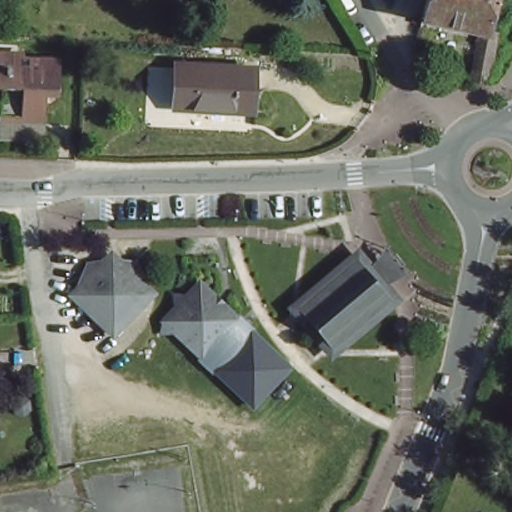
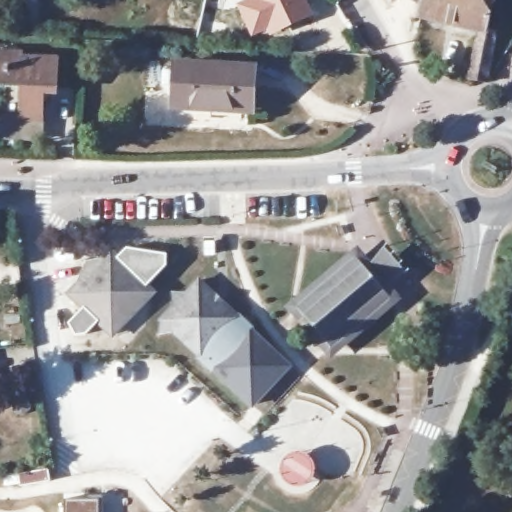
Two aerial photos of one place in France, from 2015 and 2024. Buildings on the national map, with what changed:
new [(314,15),(280,31),(252,41),(233,3),(239,0),(307,0),(314,15)]
unchanged [(492,2),(496,2),(496,7),(492,7),(486,37),(496,39),(489,75),(487,84),(486,88),(468,83),(476,38),(418,25),(424,0),(492,0),(492,2)]
unchanged [(54,87),(36,85),(35,99),(40,100),(39,117),(0,115),(0,97),(1,97),(3,83),(0,82),(0,53),(56,57),(54,87)]
unchanged [(259,72),(258,114),(181,111),(183,68),(259,72)]
unchanged [(358,252),(371,268),(387,255),(404,276),(388,289),(401,306),(330,365),(317,352),(323,346),(330,354),(390,304),(356,264),(299,312),(296,314),(301,320),(303,323),(298,328),(285,311),(297,301),(358,252)]
unchanged [(128,265),(131,261),(143,273),(140,276),(151,289),(113,331),(70,290),(81,280),(78,277),(92,263),(95,265),(101,258),(120,257),(128,265)]
unchanged [(356,264),(390,304),(330,354),(323,346),(303,323),(301,320),(296,314),(299,312),(356,264)]
unchanged [(238,320),(201,359),(163,322),(198,283),(238,320)]
unchanged [(238,320),(288,369),(250,407),(201,359),(238,320)]

